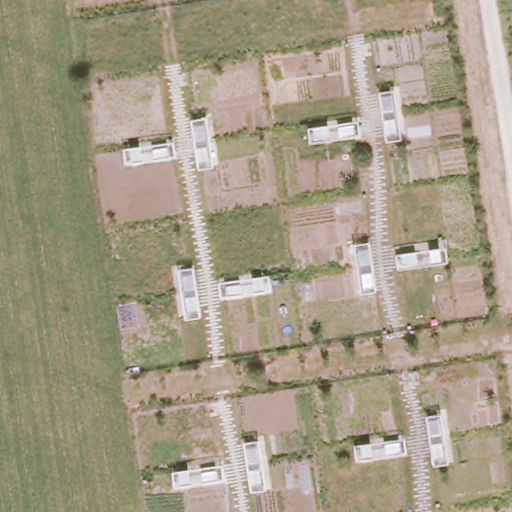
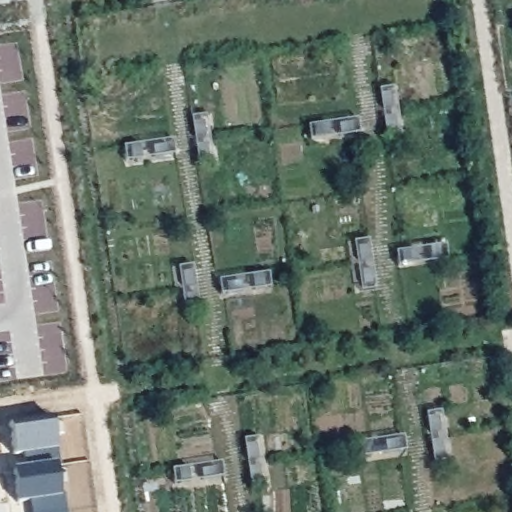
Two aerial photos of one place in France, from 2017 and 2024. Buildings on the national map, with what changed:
new [(29,503),(16,504),(13,470),(25,469),(23,456),(12,457),(10,432),(8,424),(50,418),(53,426),(56,451),(58,466),(55,466),(59,498),(63,495),(65,512),(30,512),(29,503)]

